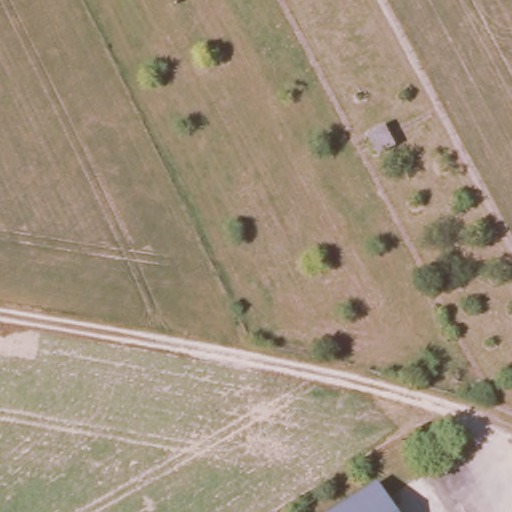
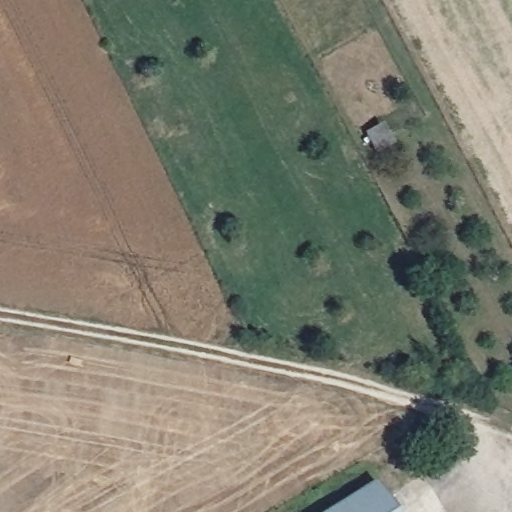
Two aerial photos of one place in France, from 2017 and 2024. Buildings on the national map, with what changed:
unchanged [(381,482),(400,512),(333,512),(381,482)]

